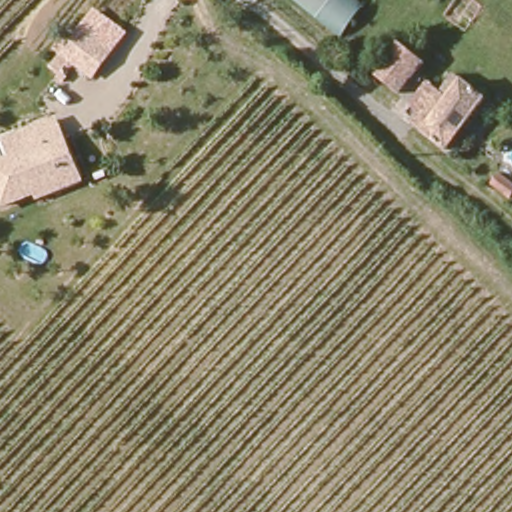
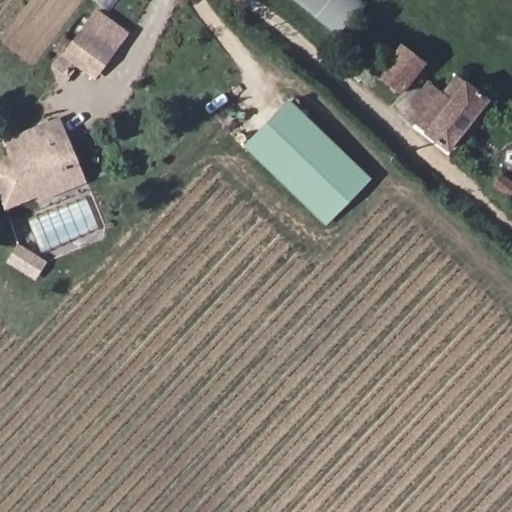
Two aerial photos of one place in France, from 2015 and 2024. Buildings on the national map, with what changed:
unchanged [(345,34),(302,0),(358,0),(364,5),(345,34)]
new [(68,46),(99,66),(116,43),(87,21),(96,9),(129,35),(94,83),(76,69),(66,83),(52,70),(61,56),(54,50),(65,35),(72,41),(68,46)]
unchanged [(116,43),(99,66),(68,46),(87,21),(116,43)]
unchanged [(401,83),(377,64),(401,34),(425,52),(401,83)]
unchanged [(447,150),(416,124),(457,74),(487,98),(447,150)]
new [(373,182),(330,228),(247,149),(292,103),(373,182)]
unchanged [(0,168),(0,156),(34,142),(27,125),(59,111),(66,131),(71,129),(87,168),(74,173),(11,199),(0,168)]
unchanged [(490,183),(497,174),(512,186),(512,190),(507,197),(490,183)]
new [(37,280),(7,264),(19,244),(47,260),(37,280)]

